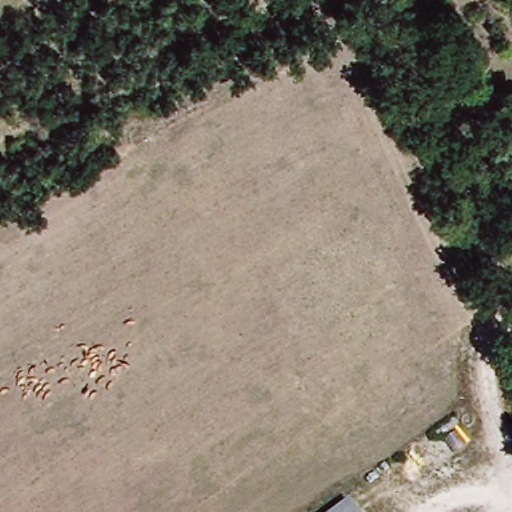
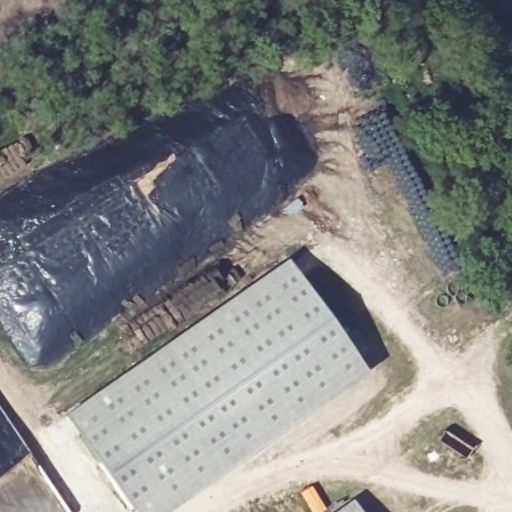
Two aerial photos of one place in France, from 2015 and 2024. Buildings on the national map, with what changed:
new [(364,374),(166,512),(133,512),(64,415),(285,260),(364,374)]
unchanged [(352,512),(343,512),(349,508),(352,512)]

